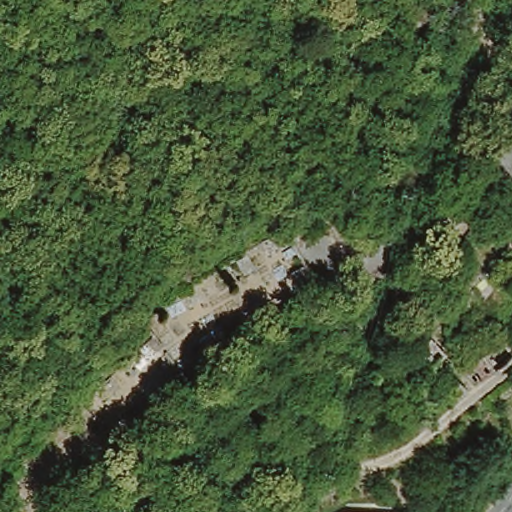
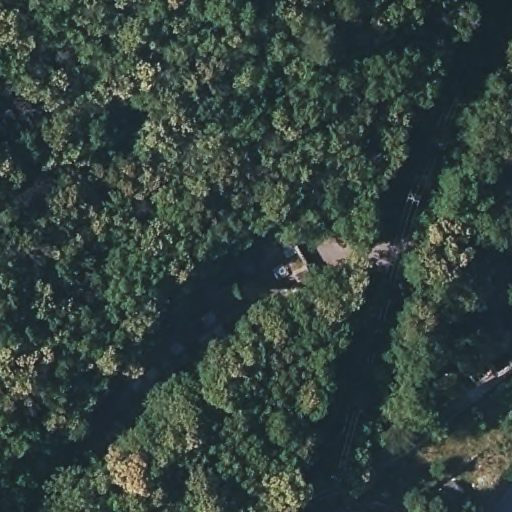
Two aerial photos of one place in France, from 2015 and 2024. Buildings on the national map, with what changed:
unchanged [(448,297),(425,315),(411,298),(435,280),(448,297)]

